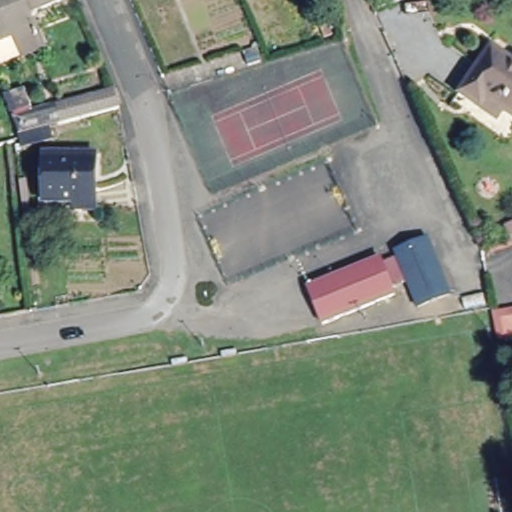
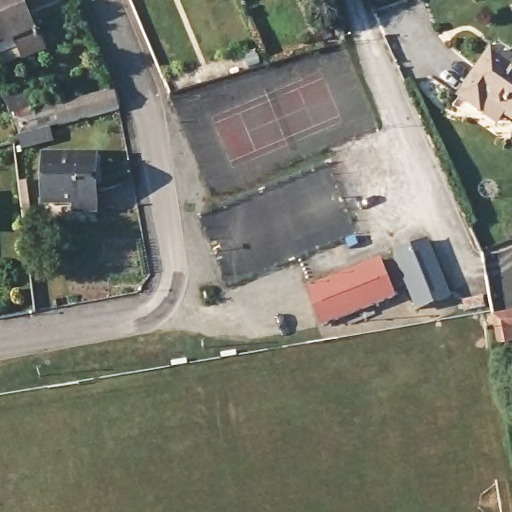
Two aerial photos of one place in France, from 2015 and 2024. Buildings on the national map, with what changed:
unchanged [(38,49),(19,56),(12,40),(0,44),(0,0),(59,0),(24,15),(38,49)]
unchanged [(480,110),(459,95),(490,50),(512,65),(512,125),(499,117),(496,122),(480,110)]
unchanged [(18,150),(15,138),(16,137),(8,119),(109,93),(116,110),(46,129),(49,142),(18,150)]
unchanged [(94,155),(92,213),(70,212),(70,205),(40,205),(41,154),(94,155)]
unchanged [(429,242),(450,296),(420,308),(410,282),(395,288),(398,295),(326,323),(312,286),(385,259),(387,265),(401,259),(399,253),(429,242)]
unchanged [(512,317),(512,332),(511,332),(508,317),(512,317)]

